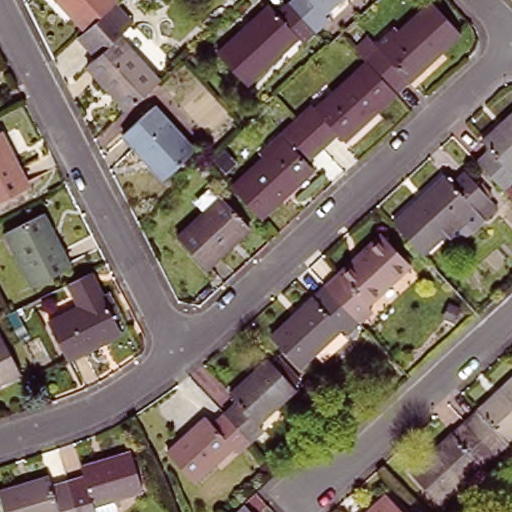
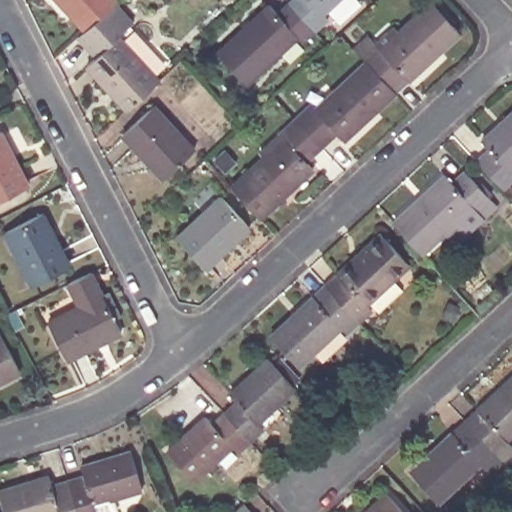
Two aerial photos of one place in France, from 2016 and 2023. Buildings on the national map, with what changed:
unchanged [(69,0),(117,0),(91,24),(69,0)]
unchanged [(133,104),(93,60),(103,52),(84,30),(91,24),(117,0),(118,0),(137,20),(123,32),(165,76),(133,104)]
unchanged [(316,30),(290,2),(292,0),(338,0),(324,13),(329,19),(316,30)]
unchanged [(368,62),(356,49),(367,38),(380,50),(433,1),(461,31),(396,92),(368,62)]
unchanged [(304,41),(299,36),(246,83),(219,53),(270,5),(278,13),(290,2),(316,30),(304,41)]
unchanged [(345,140),(338,133),(322,148),(296,119),(311,105),(316,110),(368,62),(396,92),(345,140)]
unchanged [(164,178),(124,134),(154,106),(195,150),(164,178)]
unchanged [(505,190),(478,161),(491,149),(483,141),(512,115),(512,170),(511,171),(512,172),(512,184),(505,190)]
unchanged [(307,162),(314,169),(262,218),(233,187),(285,138),(280,133),(296,119),(322,148),(307,162)]
unchanged [(0,200),(0,134),(2,133),(29,185),(0,200)]
unchanged [(442,231),(417,254),(389,224),(441,174),(449,183),(462,172),(495,206),(482,217),(454,243),(442,231)]
unchanged [(178,237),(221,197),(250,228),(207,267),(178,237)]
unchanged [(34,286),(7,233),(43,214),(71,267),(34,286)]
unchanged [(372,311),(360,322),(326,286),(382,234),(410,264),(367,305),(372,311)]
unchanged [(74,359),(55,323),(86,307),(75,285),(97,273),(127,332),(74,359)]
unchanged [(348,333),(343,327),(300,366),(271,336),(326,286),(360,322),(348,333)]
unchanged [(0,383),(0,336),(1,336),(20,372),(0,383)]
unchanged [(257,423),(263,430),(250,442),(224,414),(238,402),(231,394),(269,359),(295,388),(257,423)]
unchanged [(504,457),(466,416),(512,374),(512,432),(507,437),(512,443),(512,450),(504,457)]
unchanged [(238,454),(232,447),(196,480),(169,452),(206,418),(212,425),(224,414),(250,442),(238,454)]
unchanged [(492,468),(482,459),(440,498),(411,467),(466,416),(504,457),(492,468)]
unchanged [(81,477),(78,467),(128,452),(138,489),(88,504),(90,512),(73,512),(64,482),(81,477)]
unchanged [(0,509),(0,490),(45,476),(49,486),(64,482),(73,512),(1,512),(0,509)]
unchanged [(386,489),(407,512),(362,512),(386,489)]
unchanged [(243,507),(248,512),(237,512),(243,507)]

